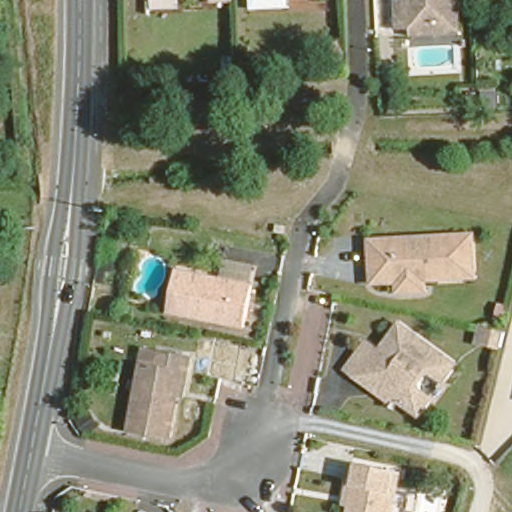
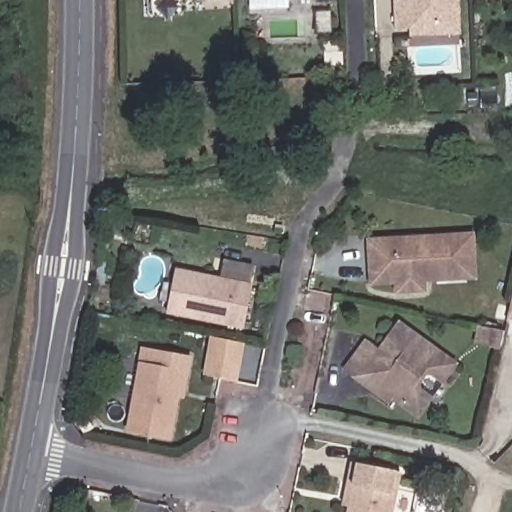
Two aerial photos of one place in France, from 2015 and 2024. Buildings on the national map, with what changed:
unchanged [(151,4),(150,0),(207,0),(151,4)]
unchanged [(245,2),(245,0),(295,0),(245,2)]
unchanged [(408,32),(393,33),(392,1),(407,1),(407,0),(459,0),(460,39),(408,41),(408,32)]
unchanged [(395,281),(370,283),(368,276),(366,244),(393,241),(472,234),(477,282),(396,291),(395,281)]
unchanged [(164,316),(172,273),(251,288),(243,331),(164,316)]
unchanged [(362,385),(343,370),(364,343),(377,353),(397,326),(456,372),(448,383),(438,375),(431,376),(422,388),(423,395),(434,403),(419,422),(397,405),(393,410),(362,385)]
unchanged [(472,348),(475,331),(482,333),(501,337),(497,353),(479,350),(472,348)]
new [(210,337),(246,343),(239,382),(202,376),(210,337)]
unchanged [(137,362),(156,366),(159,351),(187,356),(184,373),(179,400),(174,399),(166,442),(126,434),(137,362)]
unchanged [(97,416),(85,424),(77,410),(90,402),(97,416)]
unchanged [(348,512),(349,509),(343,508),(348,483),(352,465),(402,475),(394,512),(348,512)]

